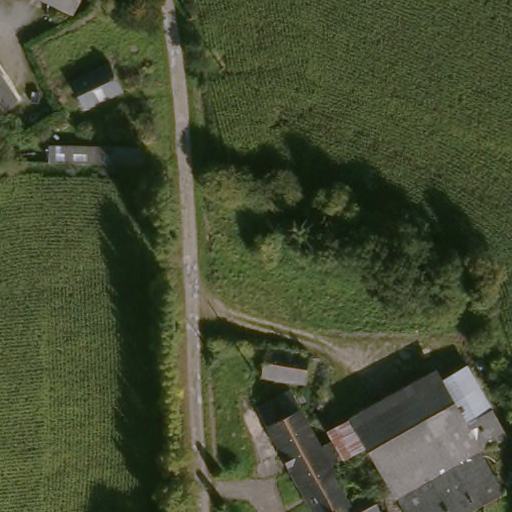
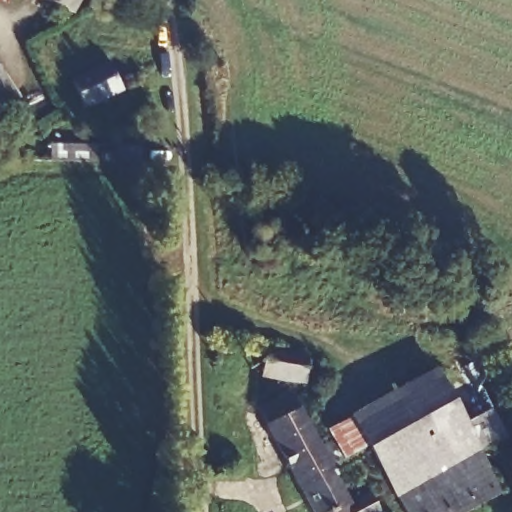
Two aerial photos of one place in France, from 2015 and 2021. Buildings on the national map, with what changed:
unchanged [(71,17),(35,0),(79,0),(71,17)]
unchanged [(111,55),(124,81),(84,100),(71,73),(111,55)]
unchanged [(15,106),(0,116),(0,85),(15,106)]
unchanged [(135,138),(135,155),(46,158),(46,140),(135,138)]
unchanged [(259,354),(306,355),(305,381),(259,380),(259,354)]
unchanged [(436,370),(443,383),(479,455),(395,495),(369,443),(353,411),(436,370)]
unchanged [(468,371),(504,443),(479,455),(443,383),(468,371)]
unchanged [(349,503),(367,493),(378,512),(310,512),(254,411),(290,390),(320,445),(331,439),(342,458),(330,465),(349,503)]
unchanged [(353,411),(369,443),(342,458),(331,439),(324,425),(353,411)]
unchanged [(477,512),(404,512),(395,495),(479,455),(501,500),(477,512)]

